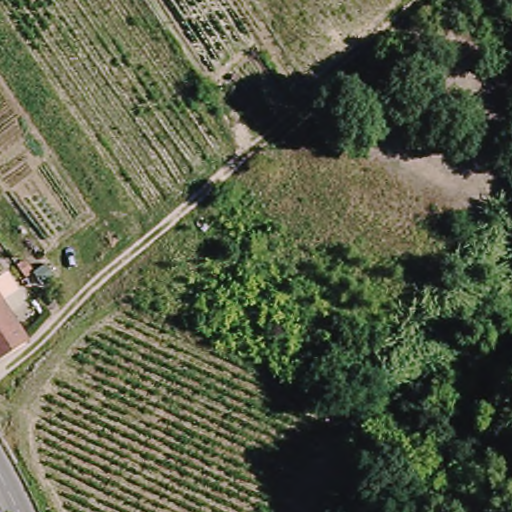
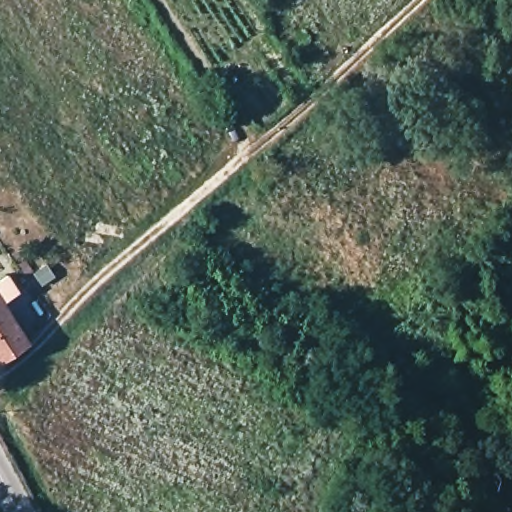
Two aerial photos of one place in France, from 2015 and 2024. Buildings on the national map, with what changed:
unchanged [(20,297),(6,305),(28,343),(0,360),(0,283),(8,278),(20,297)]

